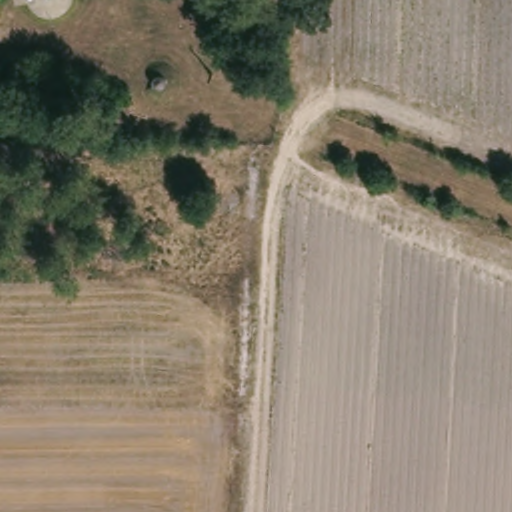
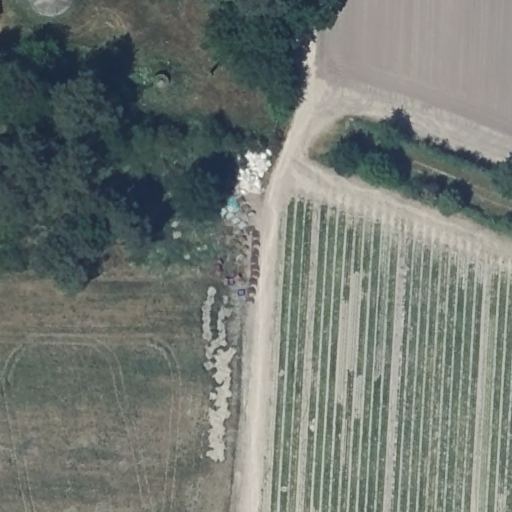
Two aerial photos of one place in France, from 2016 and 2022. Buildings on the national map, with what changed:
unchanged [(171,69),(167,72),(162,71),(160,66),(161,63),(164,61),(168,62),(171,65),(171,69)]

